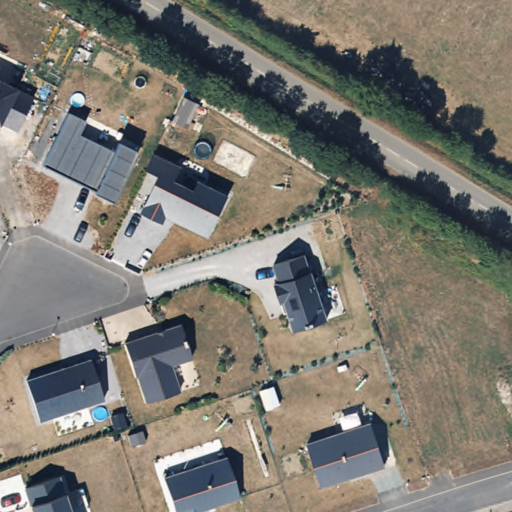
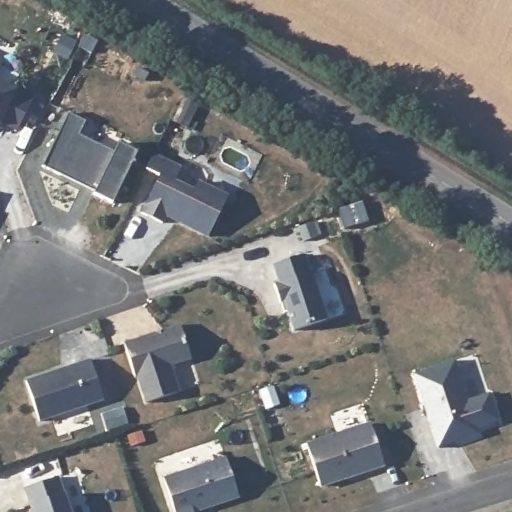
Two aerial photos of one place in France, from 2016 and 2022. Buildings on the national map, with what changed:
unchanged [(0,62),(1,62),(0,64),(0,62)]
unchanged [(15,131),(0,124),(0,83),(31,98),(15,131)]
unchanged [(86,122),(79,135),(114,150),(119,142),(138,153),(114,205),(39,166),(68,112),(86,122)]
unchanged [(182,168),(177,177),(194,186),(197,180),(230,195),(207,238),(166,219),(162,225),(141,213),(153,188),(140,179),(153,152),(182,168)]
unchanged [(306,253),(329,320),(292,332),(283,303),(279,305),(272,283),(276,281),(271,263),(306,253)]
unchanged [(192,357),(172,364),(180,390),(147,401),(138,375),(137,375),(126,341),(181,323),(192,357)]
new [(453,359),(467,399),(489,391),(499,421),(478,428),(479,433),(437,448),(412,373),(453,359)]
unchanged [(86,363),(100,403),(36,424),(23,384),(86,363)]
unchanged [(372,422),(385,465),(320,486),(306,442),(372,422)]
unchanged [(238,496),(193,511),(194,512),(176,512),(164,477),(226,459),(238,496)]
unchanged [(64,487),(75,483),(84,512),(31,512),(24,489),(61,477),(64,487)]

